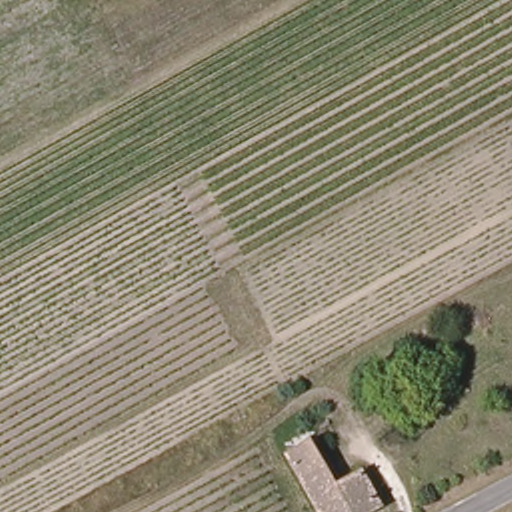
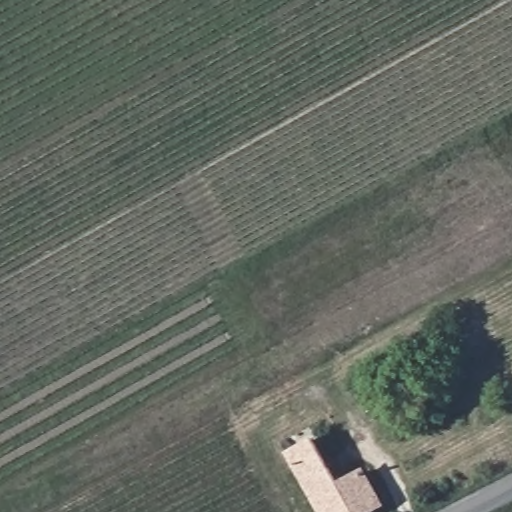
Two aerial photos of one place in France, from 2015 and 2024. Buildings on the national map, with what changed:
unchanged [(377,512),(325,512),(300,470),(311,464),(306,455),(317,448),(342,488),(365,476),(385,508),(377,512)]

